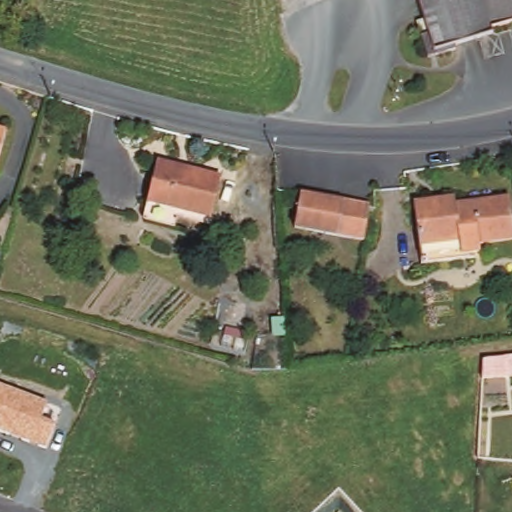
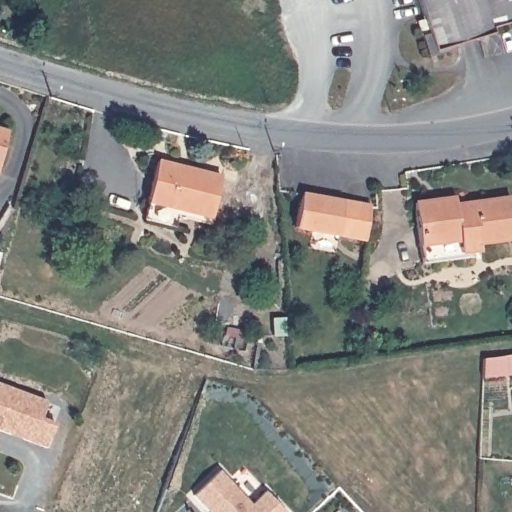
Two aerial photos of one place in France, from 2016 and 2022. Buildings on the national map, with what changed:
unchanged [(493,34),(435,51),(418,0),(512,0),(512,21),(491,27),(493,34)]
unchanged [(8,129),(0,154),(0,126),(8,129)]
unchanged [(160,162),(222,177),(211,220),(150,204),(160,162)]
unchanged [(413,198),(455,192),(457,200),(510,192),(512,209),(512,247),(420,258),(413,198)]
unchanged [(363,241),(335,234),(295,227),(302,194),(343,202),(368,207),(363,241)]
unchanged [(49,400),(43,419),(57,423),(48,451),(0,433),(0,382),(49,400)]
new [(192,495),(221,469),(252,503),(266,490),(285,512),(207,512),(192,495)]

